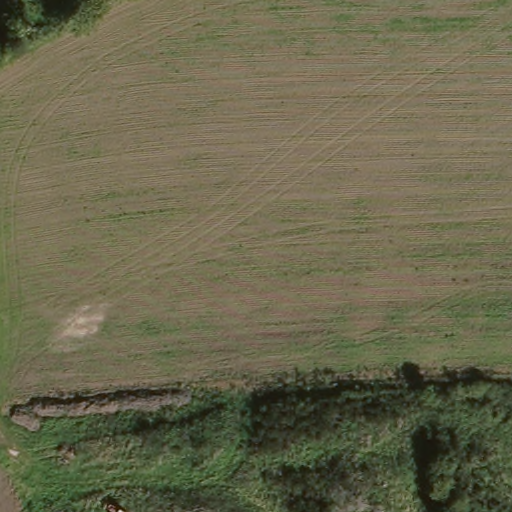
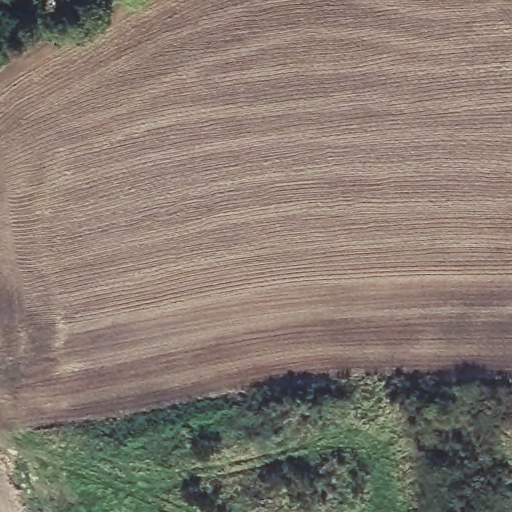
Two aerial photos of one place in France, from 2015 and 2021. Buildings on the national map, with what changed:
unchanged [(92,0),(95,0),(93,1),(92,0)]

